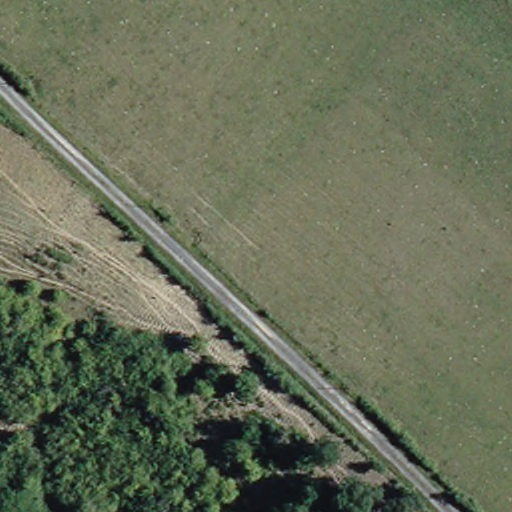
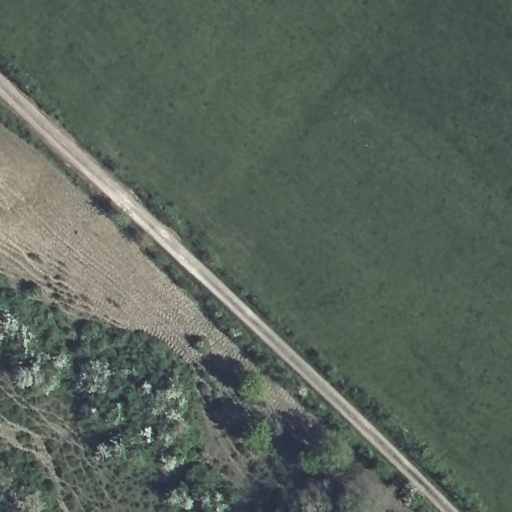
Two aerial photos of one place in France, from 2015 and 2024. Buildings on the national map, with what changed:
[]

